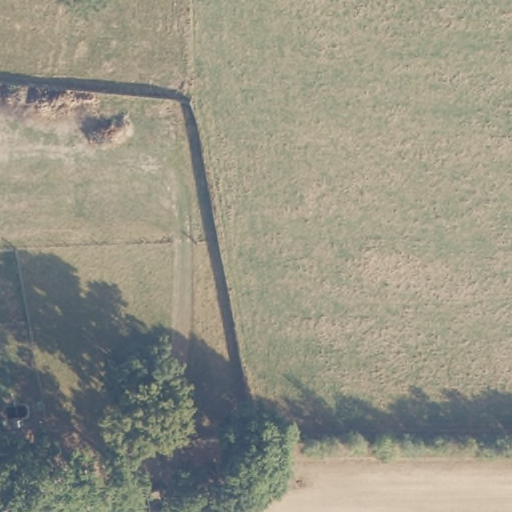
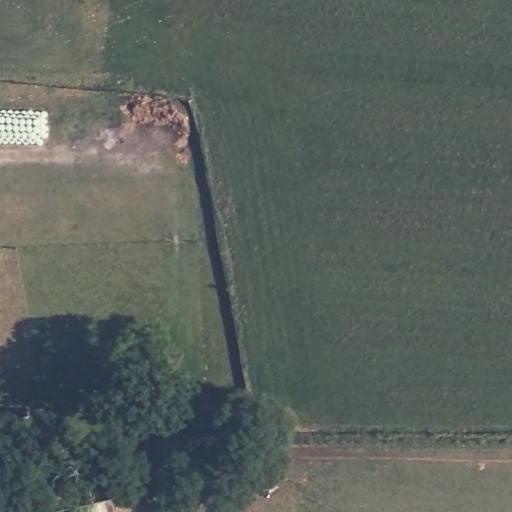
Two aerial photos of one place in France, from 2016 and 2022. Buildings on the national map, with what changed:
unchanged [(4,453),(39,450),(41,468),(8,471),(4,453)]

